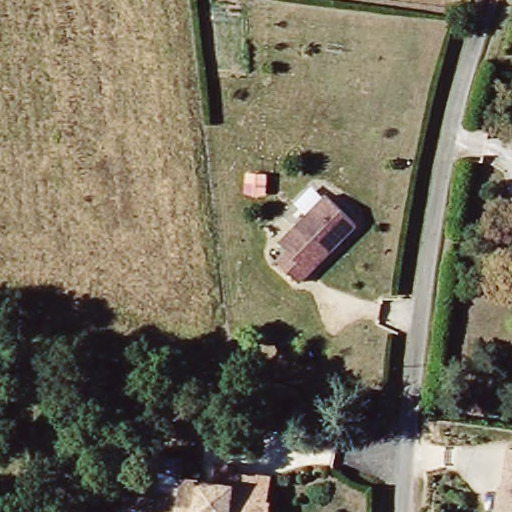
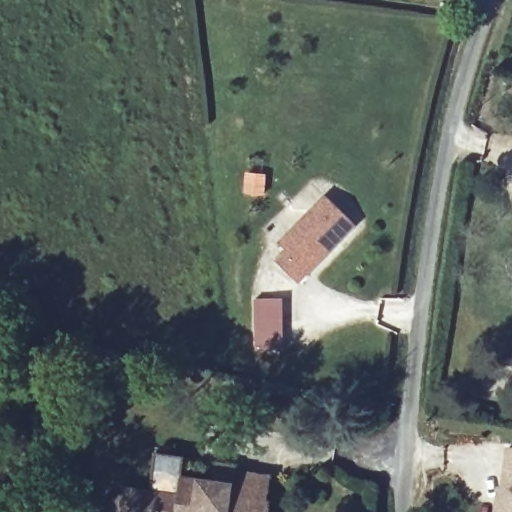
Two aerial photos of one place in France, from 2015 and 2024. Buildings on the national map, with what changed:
unchanged [(302,282),(281,262),(291,251),(283,243),(330,195),(360,225),(302,282)]
new [(282,346),(256,346),(255,300),(281,298),(282,346)]
unchanged [(512,452),(512,512),(503,512),(511,452),(512,452)]
unchanged [(113,512),(111,511),(110,508),(110,507),(109,504),(110,502),(110,500),(112,498),(114,497),(116,496),(118,496),(120,496),(121,487),(173,495),(175,477),(209,482),(211,463),(230,467),(230,472),(265,477),(262,502),(265,502),(263,512),(113,512)]

